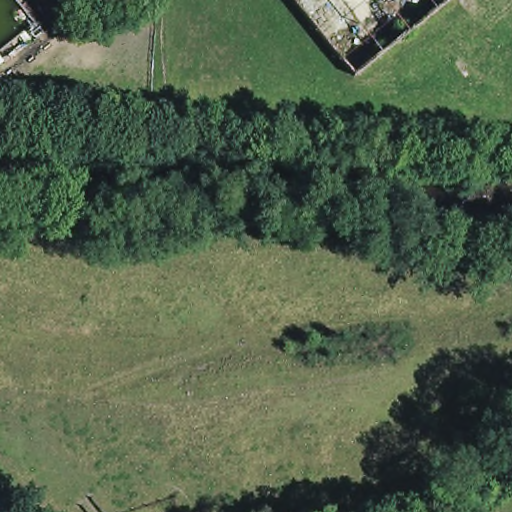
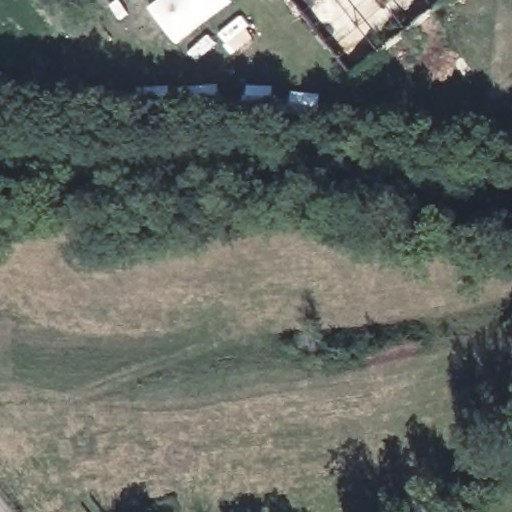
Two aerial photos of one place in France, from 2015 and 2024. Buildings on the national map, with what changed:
new [(158,0),(232,0),(232,1),(188,35),(181,27),(177,30),(176,28),(168,35),(147,9),(158,0)]

